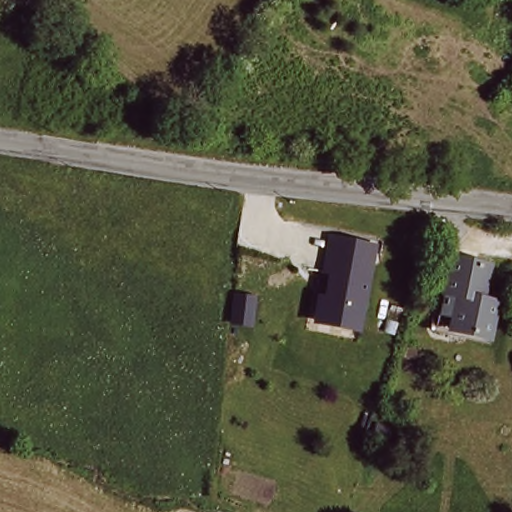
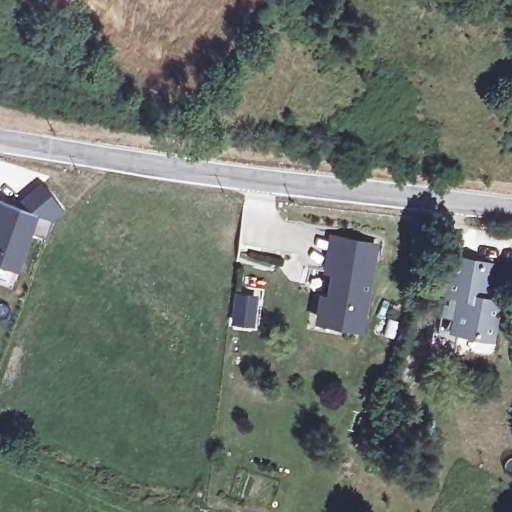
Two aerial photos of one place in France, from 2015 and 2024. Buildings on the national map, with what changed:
new [(40,189),(61,216),(52,223),(46,242),(27,235),(13,268),(0,263),(0,202),(15,207),(40,189)]
unchanged [(347,245),(379,251),(362,335),(340,331),(342,326),(320,321),(324,301),(331,303),(336,277),(329,275),(335,242),(347,245)]
unchanged [(488,265),(481,298),(496,302),(487,335),(454,327),(452,335),(437,330),(454,257),(488,265)]

